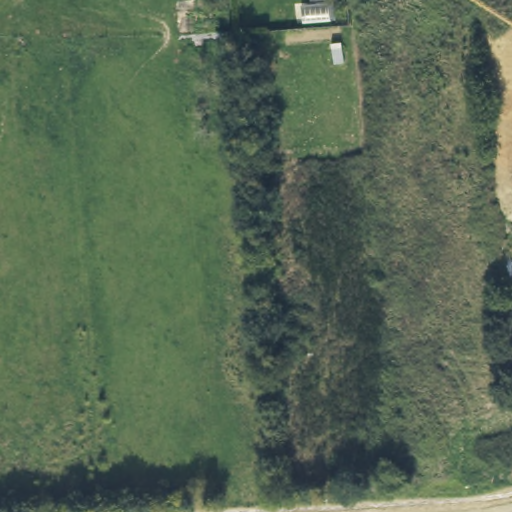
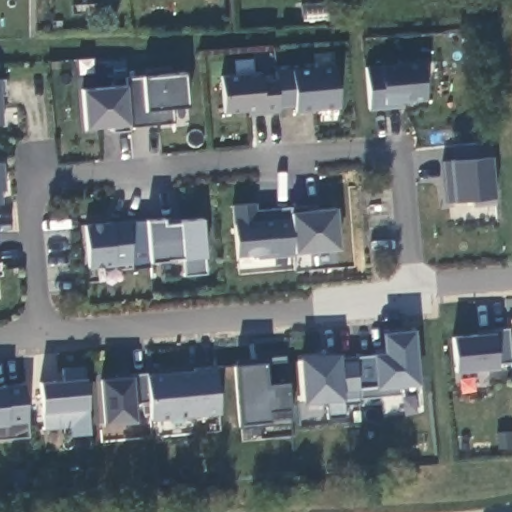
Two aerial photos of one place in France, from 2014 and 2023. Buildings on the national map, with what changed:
new [(428,101),(402,103),(402,108),(370,110),(366,67),(423,61),(428,101)]
new [(261,73),(261,81),(277,79),(276,71),(336,65),(341,108),(296,113),(295,105),(280,107),(279,113),(249,116),(248,111),(225,113),(220,75),(261,73)]
new [(190,106),(176,107),(174,123),(130,127),(130,131),(113,133),(115,125),(86,129),(83,89),(126,86),(128,86),(127,78),(144,76),(186,73),(190,106)]
new [(3,124),(0,124),(0,86),(3,124)]
new [(491,156),(492,156),(496,197),(496,204),(499,219),(482,220),(481,206),(473,207),(477,199),(454,202),(446,203),(442,163),(450,161),(457,160),(453,145),(490,142),(491,156)]
new [(4,162),(6,190),(2,190),(3,204),(0,204),(0,162),(4,162)]
new [(340,249),(298,253),(295,256),(259,260),(256,255),(235,257),(231,205),(256,204),(257,210),(306,206),(310,210),(337,208),(340,249)]
new [(207,257),(207,274),(186,275),(187,259),(153,262),(151,268),(133,269),(133,264),(117,265),(87,267),(85,224),(112,223),(128,221),(129,223),(146,221),(163,220),(164,225),(179,224),(179,220),(203,219),(207,257)]
new [(420,385),(403,387),(401,395),(360,398),(360,403),(344,404),(346,417),(328,419),(327,407),(322,402),(304,404),(300,357),(341,353),(341,358),(373,355),(372,353),(384,352),(382,333),(414,329),(420,385)]
new [(512,363),(498,363),(499,368),(455,372),(452,337),(495,333),(509,329),(512,363)]
new [(221,414),(151,421),(150,399),(135,401),(138,422),(104,425),(101,379),(133,376),(147,374),(195,371),(194,368),(216,366),(221,414)]
new [(86,378),(89,409),(93,437),(69,438),(68,434),(65,434),(64,428),(44,430),(40,382),(64,379),(62,368),(85,367),(86,378)]
new [(28,422),(30,437),(0,440),(0,386),(4,386),(24,384),(28,422)]

